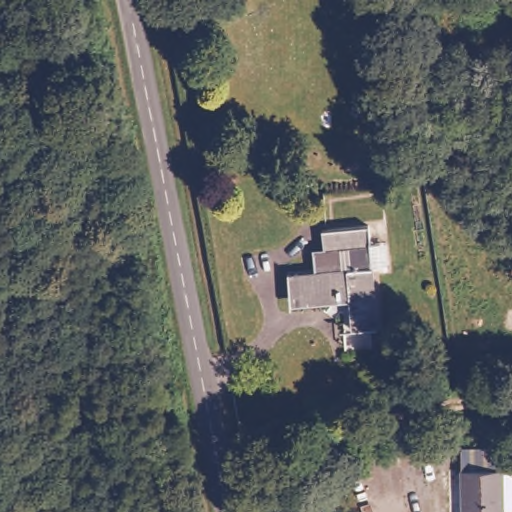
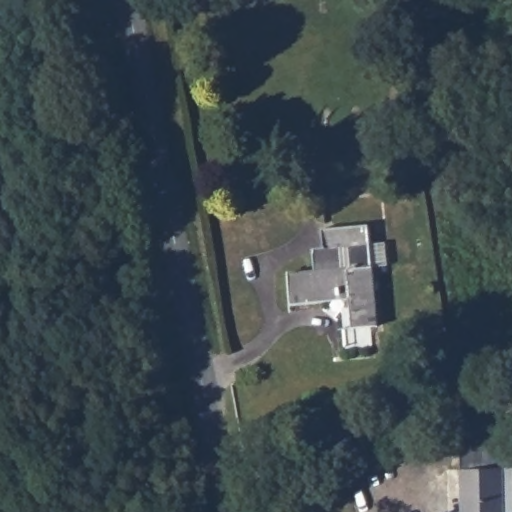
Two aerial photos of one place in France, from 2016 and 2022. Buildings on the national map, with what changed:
unchanged [(376,327),(350,328),(346,292),(288,292),(290,270),(315,271),(316,250),(326,250),(325,229),(372,226),(376,327)]
unchanged [(458,473),(512,468),(512,512),(461,512),(458,473)]

